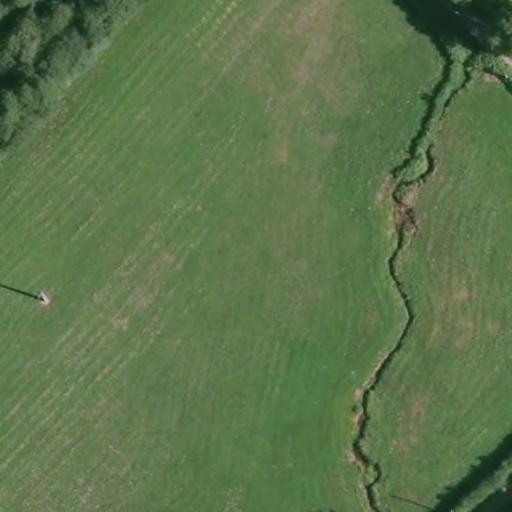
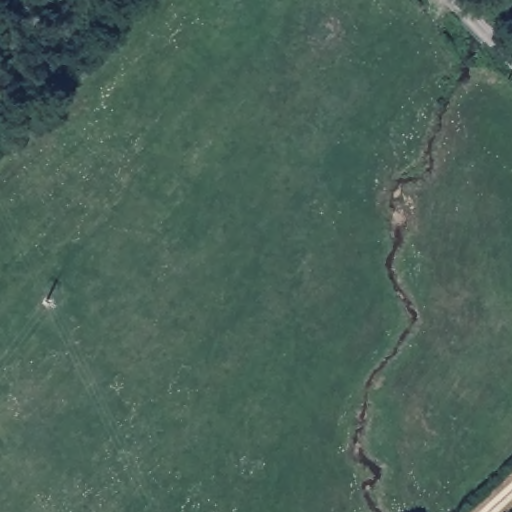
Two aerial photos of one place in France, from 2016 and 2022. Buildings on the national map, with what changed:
[]

